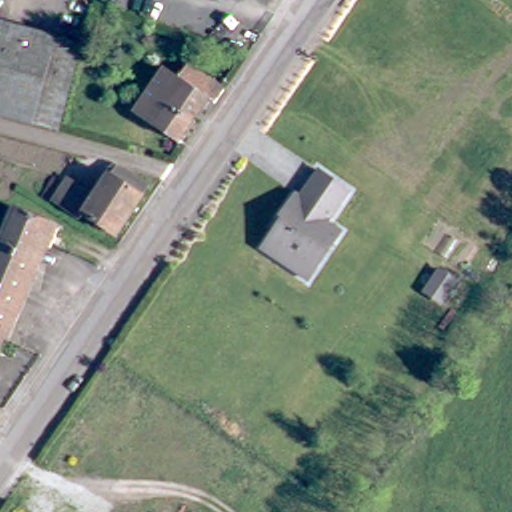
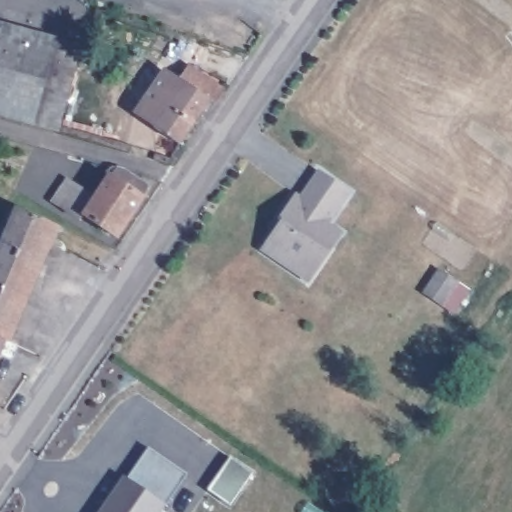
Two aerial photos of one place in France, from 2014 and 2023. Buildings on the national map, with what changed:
unchanged [(6,24),(88,45),(65,130),(0,112),(0,27),(5,29),(6,24)]
unchanged [(208,105),(176,149),(152,130),(185,88),(173,80),(177,75),(183,80),(191,70),(225,95),(215,110),(208,105)]
unchanged [(134,116),(166,75),(173,80),(185,88),(152,130),(134,116)]
unchanged [(297,262),(270,244),(280,227),(285,230),(292,218),(286,215),(303,189),(308,192),(326,165),(356,185),(335,217),(349,226),(340,240),(316,275),(297,262)]
unchanged [(60,208),(73,186),(99,201),(114,181),(119,185),(126,176),(150,194),(144,202),(146,204),(123,242),(88,220),(85,225),(60,208)]
unchanged [(62,234),(57,245),(55,252),(45,247),(30,280),(35,281),(10,340),(0,335),(0,240),(12,212),(62,234)]
unchanged [(463,275),(450,297),(432,285),(447,265),(463,275)]
unchanged [(2,356),(0,355),(0,335),(10,340),(2,356)]
new [(166,503),(161,512),(99,512),(123,475),(127,478),(149,446),(186,473),(166,503)]

